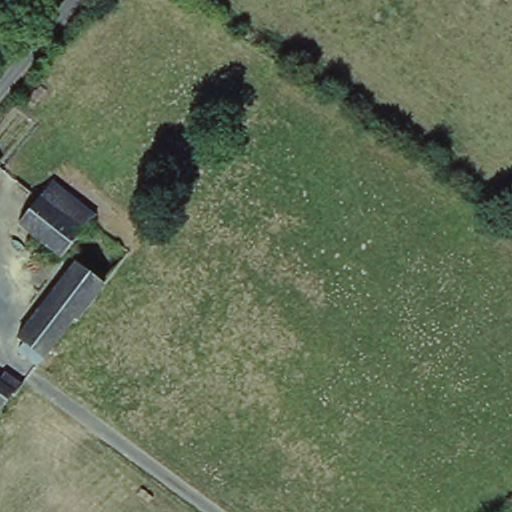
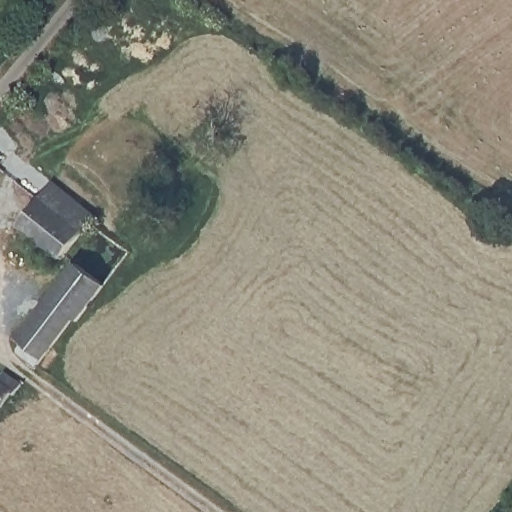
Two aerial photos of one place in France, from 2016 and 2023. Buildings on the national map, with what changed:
unchanged [(0,166),(0,164),(1,164),(0,166)]
unchanged [(46,183),(96,218),(91,224),(84,234),(34,202),(46,183)]
unchanged [(84,234),(64,261),(15,227),(34,202),(84,234)]
unchanged [(11,350),(69,266),(102,282),(76,322),(72,319),(37,369),(11,350)]
unchanged [(19,393),(7,408),(0,404),(0,378),(4,380),(8,374),(28,385),(24,394),(19,393)]

